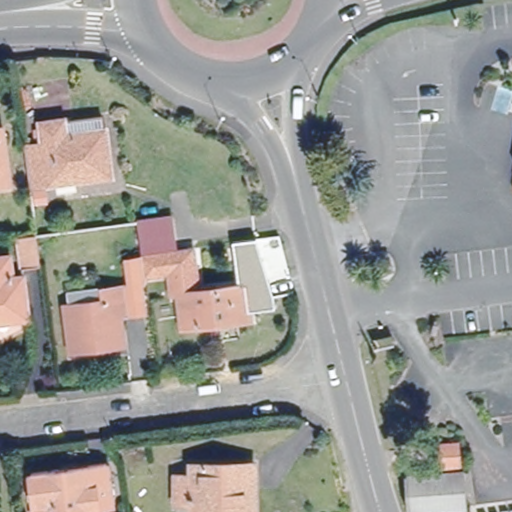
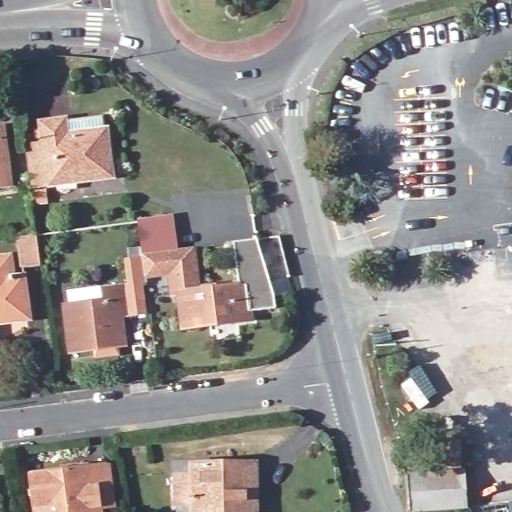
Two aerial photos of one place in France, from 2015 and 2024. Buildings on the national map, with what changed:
unchanged [(35,153),(54,150),(52,130),(111,122),(119,181),(40,192),(35,153)]
unchanged [(12,186),(0,188),(0,132),(5,131),(12,186)]
unchanged [(173,218),(177,251),(144,256),(140,223),(173,218)]
unchanged [(40,267),(22,269),(17,239),(36,237),(40,267)]
unchanged [(177,251),(195,249),(201,294),(249,287),(254,318),(186,328),(181,295),(174,296),(171,275),(147,278),(146,265),(144,256),(177,251)]
unchanged [(144,285),(147,313),(121,316),(125,346),(72,353),(67,307),(104,302),(103,291),(135,287),(132,267),(146,265),(147,278),(148,285),(144,285)]
unchanged [(17,318),(0,320),(0,281),(12,280),(17,318)]
unchanged [(458,449),(460,470),(437,471),(436,451),(458,449)]
unchanged [(112,510),(93,512),(30,512),(29,500),(35,499),(32,478),(107,468),(112,510)]
unchanged [(405,481),(462,477),(464,512),(407,512),(405,482),(405,481)]
unchanged [(191,492),(191,480),(226,480),(255,480),(255,512),(176,512),(176,492),(191,492)]

